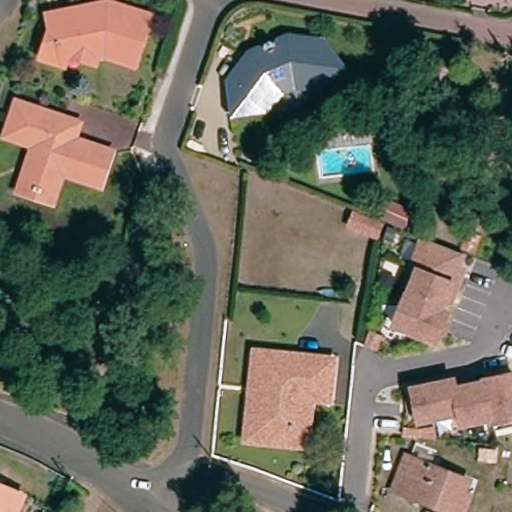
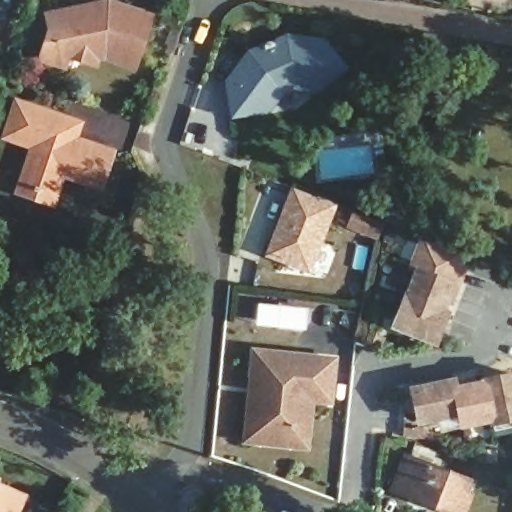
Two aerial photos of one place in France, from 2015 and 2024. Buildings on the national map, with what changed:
unchanged [(74,57),(70,68),(46,60),(55,30),(53,16),(107,5),(119,3),(158,14),(140,67),(107,56),(103,66),(74,57)]
unchanged [(227,86),(246,58),(258,53),(259,49),(261,45),(266,43),(271,44),(275,45),(286,41),(317,44),(338,69),(313,89),(291,87),(277,93),(263,111),(234,118),(227,86)]
unchanged [(63,174),(60,185),(54,204),(20,192),(35,145),(5,135),(15,104),(65,120),(79,124),(74,139),(75,139),(92,144),(113,151),(111,159),(103,180),(101,186),(90,182),(63,174)]
new [(263,257),(291,188),(337,204),(311,274),(263,257)]
unchanged [(378,219),(385,200),(409,210),(402,228),(378,219)]
unchanged [(444,333),(439,331),(435,340),(394,324),(405,296),(406,297),(417,269),(411,266),(422,238),(462,254),(458,265),(463,268),(456,284),(450,300),(445,298),(440,310),(446,312),(442,322),(447,324),(444,333)]
unchanged [(290,446),(259,443),(244,442),(251,374),(253,352),(333,360),(329,402),(310,400),(307,427),(305,448),(290,446)]
unchanged [(409,400),(415,399),(413,388),(454,380),(455,388),(485,383),(484,380),(512,375),(512,418),(492,422),(492,418),(462,424),(460,412),(419,420),(417,409),(411,410),(409,400)]
unchanged [(401,461),(465,485),(460,498),(466,501),(462,512),(430,512),(388,496),(401,461)]
unchanged [(15,512),(0,512),(0,494),(19,502),(15,512)]

